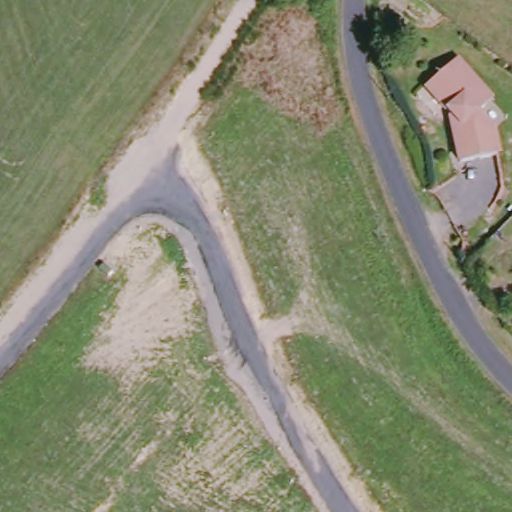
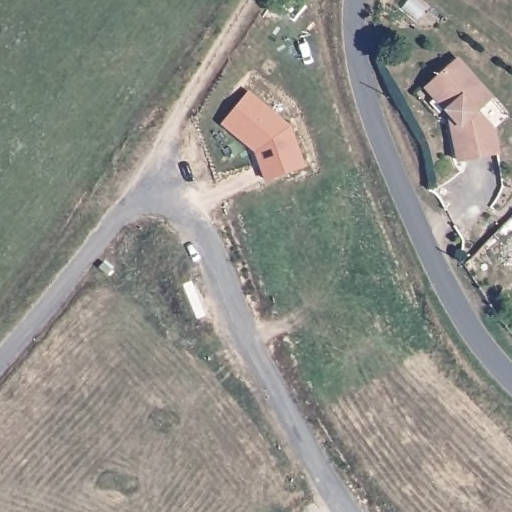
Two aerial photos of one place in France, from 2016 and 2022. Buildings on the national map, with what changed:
unchanged [(485,99),(472,110),(487,128),(492,153),(452,161),(445,128),(453,124),(442,110),(420,84),(430,76),(452,57),(485,99)]
new [(291,125),(306,165),(265,180),(255,151),(223,124),(250,92),(291,125)]

